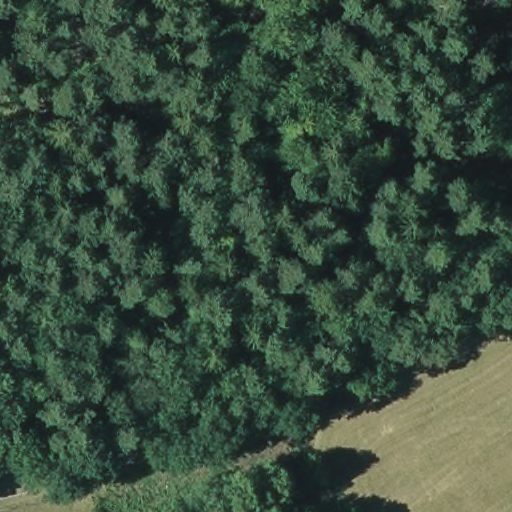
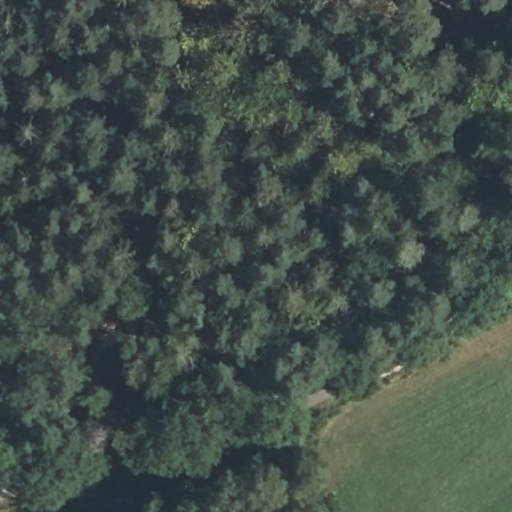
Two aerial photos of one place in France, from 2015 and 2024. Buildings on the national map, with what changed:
unchanged [(228,467),(222,447),(290,423),(296,443),(228,467)]
unchanged [(96,502),(92,483),(123,475),(128,493),(96,502)]

